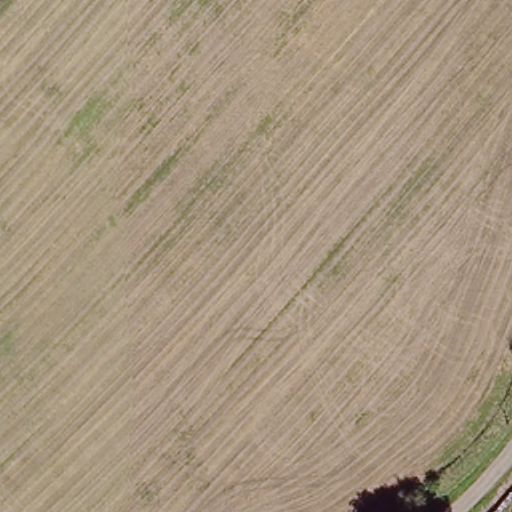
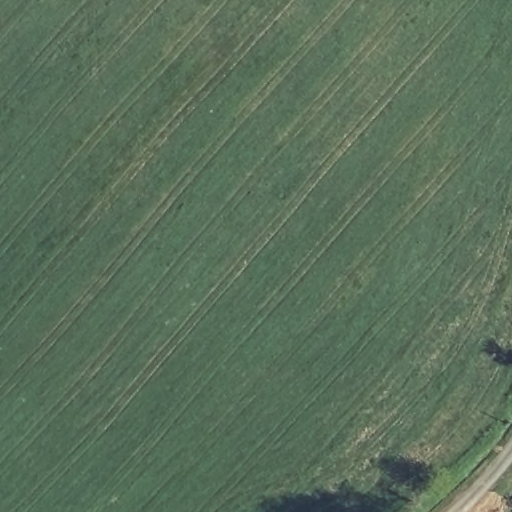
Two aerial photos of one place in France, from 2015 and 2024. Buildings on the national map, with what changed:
[]

